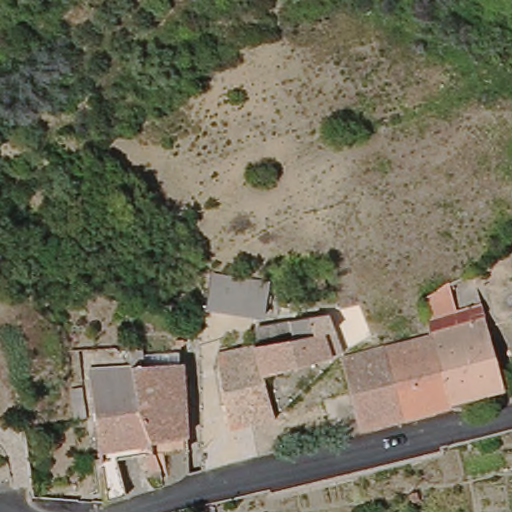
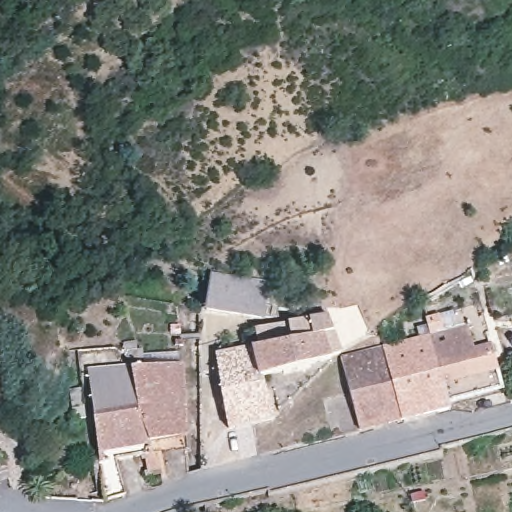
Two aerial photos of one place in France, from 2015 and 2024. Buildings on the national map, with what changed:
unchanged [(450,405),(434,335),(426,298),(451,282),(474,268),(505,391),(450,405)]
unchanged [(290,283),(310,276),(312,279),(327,274),(332,295),(295,303),(290,283)]
unchanged [(212,282),(256,286),(270,289),(265,320),(208,313),(210,301),(212,282)]
unchanged [(334,313),(338,330),(342,352),(330,356),(331,361),(290,372),(262,382),(270,418),(271,420),(252,423),(229,427),(227,415),(218,358),(255,349),(252,332),(297,322),(317,317),(334,313)]
unchanged [(434,335),(450,405),(452,412),(430,418),(412,340),(434,335)]
unchanged [(412,340),(430,418),(405,424),(401,401),(387,346),(412,340)]
unchanged [(401,401),(405,424),(362,435),(353,396),(343,356),(387,346),(401,401)]
unchanged [(128,366),(126,361),(122,351),(141,347),(145,363),(180,359),(188,429),(151,430),(135,383),(128,366)]
unchanged [(161,457),(145,462),(140,445),(117,453),(124,493),(100,500),(87,418),(80,370),(128,366),(135,383),(151,430),(161,457)]
unchanged [(332,443),(324,402),(353,396),(362,435),(332,443)]
unchanged [(65,410),(77,409),(78,419),(65,422),(65,410)]
unchanged [(13,483),(33,479),(35,487),(15,492),(13,483)]

